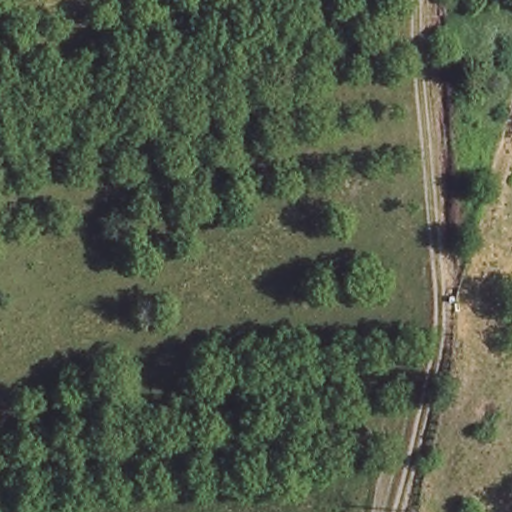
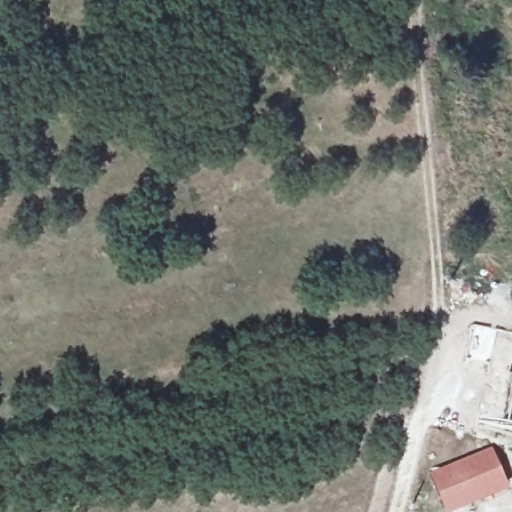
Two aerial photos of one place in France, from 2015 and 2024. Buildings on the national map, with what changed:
new [(510,487),(453,512),(444,512),(427,471),(491,445),(510,487)]

